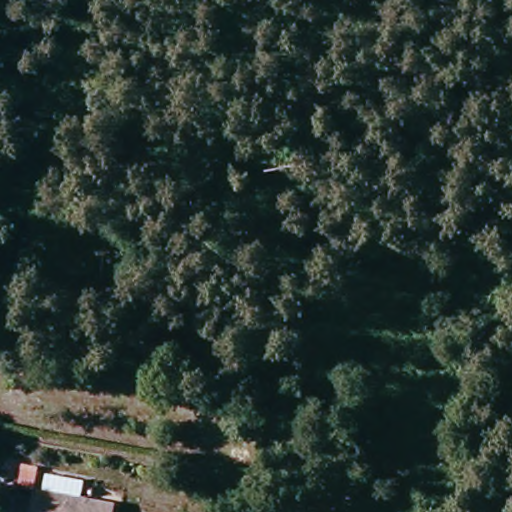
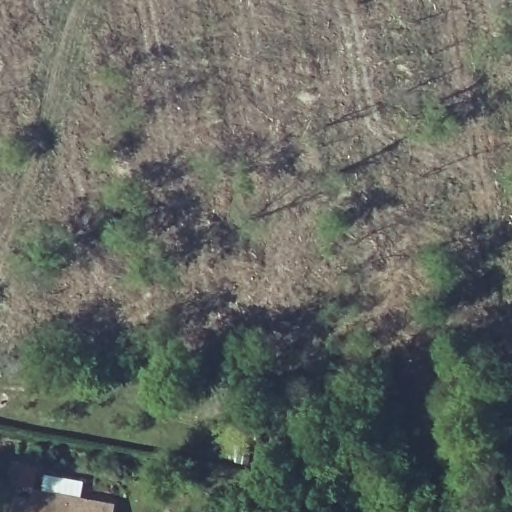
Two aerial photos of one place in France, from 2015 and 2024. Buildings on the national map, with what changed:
unchanged [(80,481),(77,498),(110,504),(109,512),(8,512),(10,498),(29,500),(30,491),(39,492),(41,475),(80,481)]

